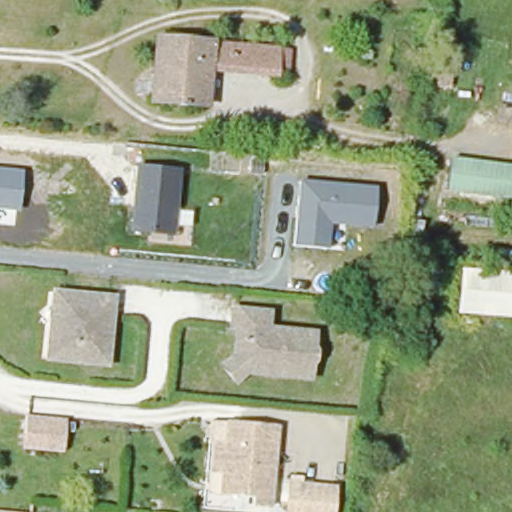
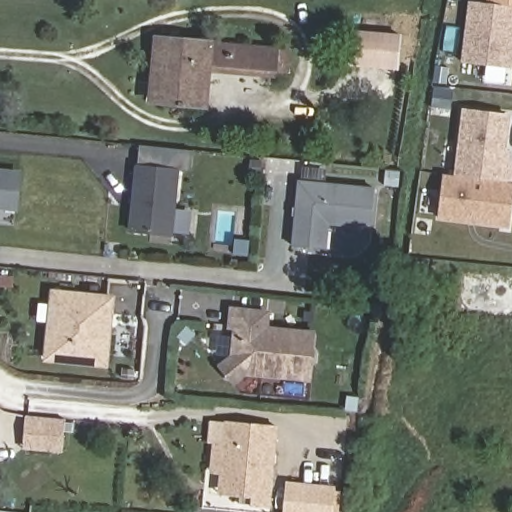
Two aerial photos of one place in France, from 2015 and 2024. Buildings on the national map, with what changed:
new [(461,62),(468,1),(485,3),(485,0),(512,0),(512,68),(461,62)]
new [(399,71),(348,67),(351,29),(402,34),(399,71)]
unchanged [(155,75),(158,39),(212,43),(231,45),(277,49),(277,52),(288,52),(286,74),(275,73),(275,76),(259,75),(259,73),(229,71),(210,69),(207,106),(161,102),(152,101),(155,75)]
new [(437,219),(443,174),(453,175),(461,107),(510,114),(505,149),(511,150),(510,161),(512,161),(512,210),(510,228),(437,219)]
demolished [(512,167),(512,204),(448,195),(453,158),(512,167)]
unchanged [(174,237),(128,232),(135,163),(181,169),(174,237)]
unchanged [(0,209),(0,167),(23,170),(20,211),(0,209)]
unchanged [(371,229),(330,224),(327,247),(293,244),(300,180),(376,187),(371,229)]
unchanged [(441,265),(438,290),(423,288),(426,263),(441,265)]
unchanged [(460,314),(462,272),(512,273),(512,319),(460,314)]
unchanged [(112,296),(116,297),(113,323),(109,363),(49,357),(57,290),(112,296)]
unchanged [(224,372),(235,362),(236,350),(239,332),(233,332),(235,315),(270,318),(268,335),(315,340),(313,355),(316,357),(315,367),(312,369),(310,384),(248,377),(236,387),(224,372)]
new [(28,416),(68,420),(65,452),(57,451),(25,448),(26,435),(28,416)]
unchanged [(277,455),(271,506),(255,504),(255,496),(235,493),(236,485),(226,470),(214,468),(216,449),(217,442),(230,443),(233,420),(281,425),(277,455)]
unchanged [(335,512),(285,512),(287,482),(337,487),(335,512)]

